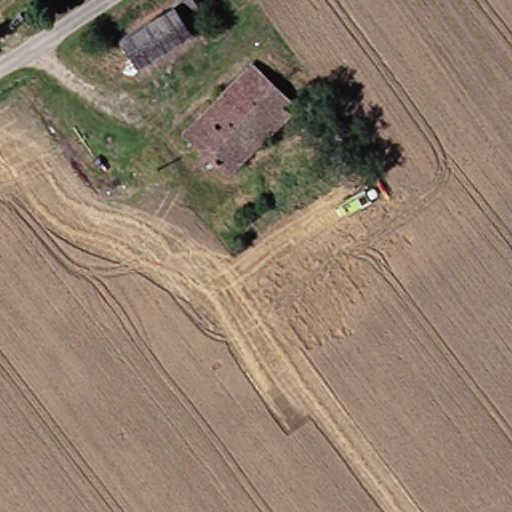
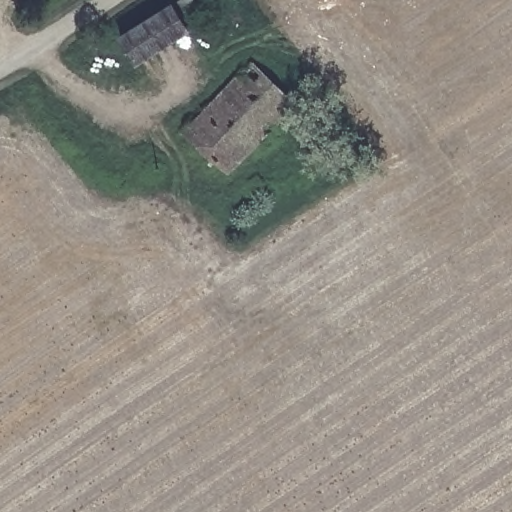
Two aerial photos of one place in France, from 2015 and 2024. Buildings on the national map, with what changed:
unchanged [(192,0),(206,20),(136,68),(120,45),(185,0),(192,0)]
unchanged [(301,101),(232,172),(188,132),(258,59),(301,101)]

